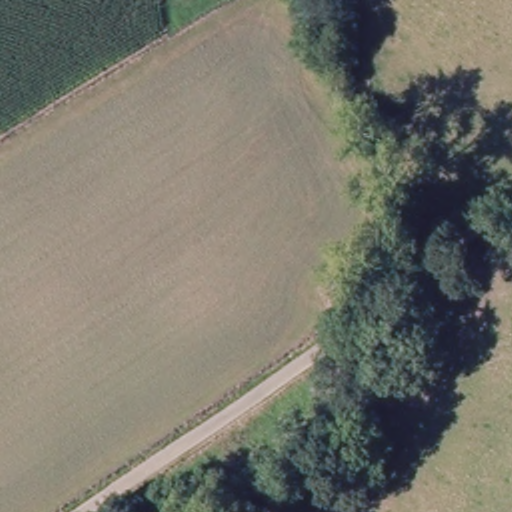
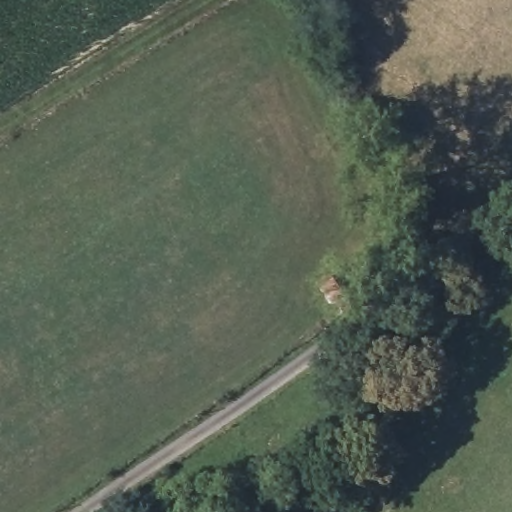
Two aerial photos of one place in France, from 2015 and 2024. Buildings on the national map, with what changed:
unchanged [(322,285),(345,268),(366,295),(343,311),(322,285)]

